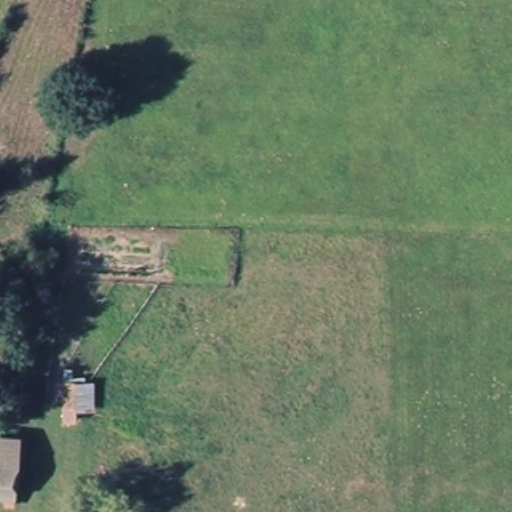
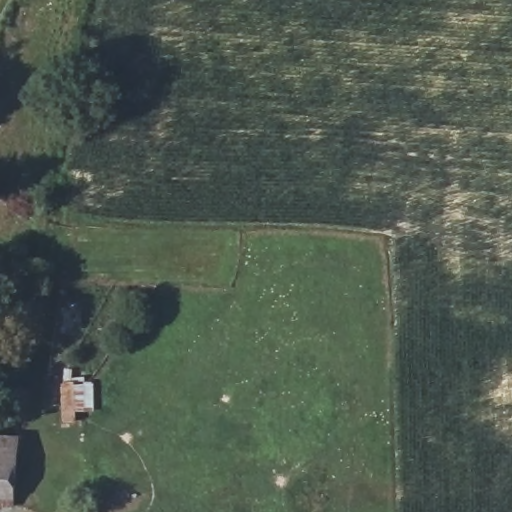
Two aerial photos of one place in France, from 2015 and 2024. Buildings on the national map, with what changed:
unchanged [(2,391),(31,391),(28,431),(0,428),(2,391)]
unchanged [(20,438),(17,493),(0,492),(0,437),(20,438)]

